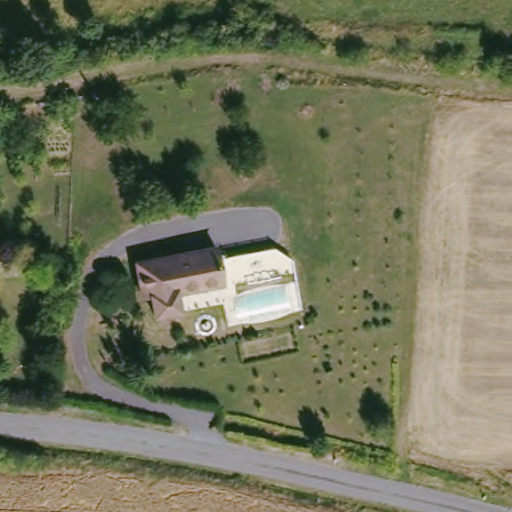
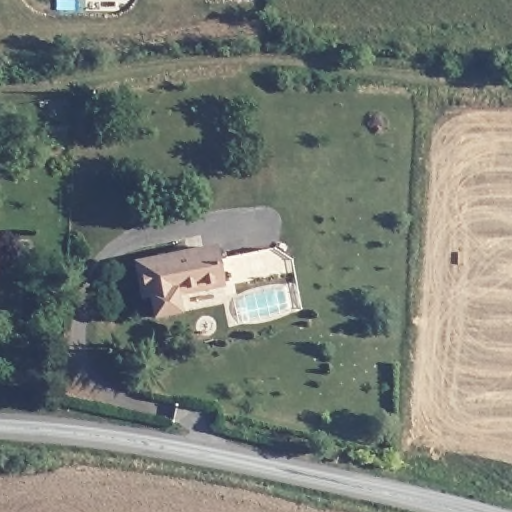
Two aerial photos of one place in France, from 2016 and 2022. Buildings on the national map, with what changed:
unchanged [(179,295),(181,311),(156,316),(151,295),(143,297),(137,262),(215,246),(218,258),(224,285),(179,295)]
unchanged [(224,285),(218,258),(273,246),(290,256),(293,268),(224,285)]

